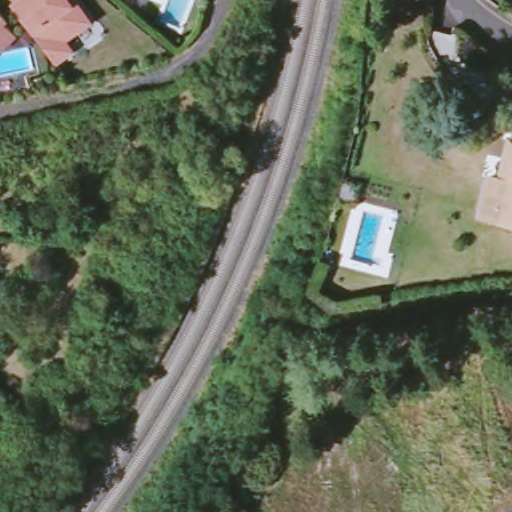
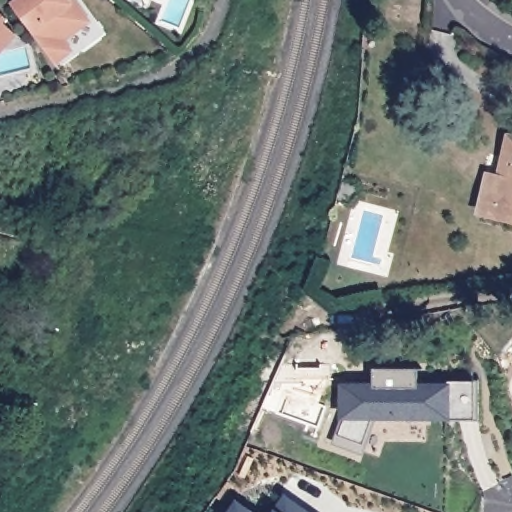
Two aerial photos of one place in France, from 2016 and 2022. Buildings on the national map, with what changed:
unchanged [(69,0),(75,7),(78,5),(94,26),(68,45),(76,55),(59,68),(10,0),(11,0),(69,0)]
unchanged [(1,20),(13,31),(0,46),(0,12),(4,16),(1,20)]
unchanged [(476,209),(485,172),(496,174),(504,141),(506,133),(512,135),(512,217),(476,209)]
new [(346,412),(344,389),(373,387),(372,373),(417,370),(418,384),(446,382),(446,422),(371,428),(358,450),(336,442),(346,412)]
new [(446,382),(479,379),(479,420),(446,422),(446,382)]

